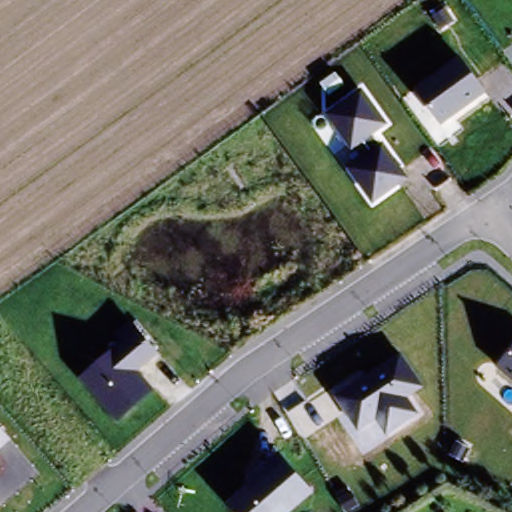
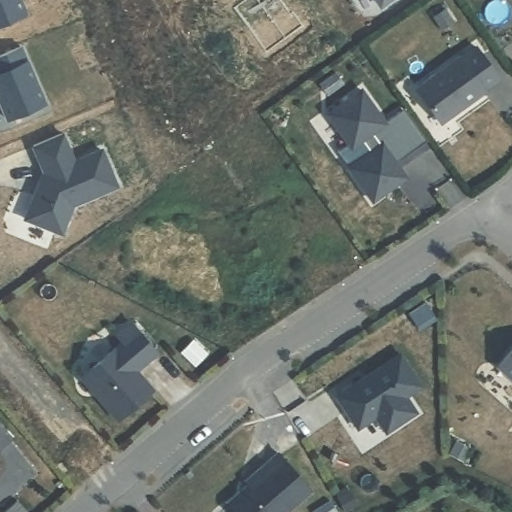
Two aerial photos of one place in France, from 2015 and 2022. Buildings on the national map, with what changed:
new [(0,25),(0,0),(20,0),(26,13),(0,25)]
new [(376,0),(389,0),(380,6),(376,0)]
new [(45,103),(7,119),(0,102),(0,56),(20,47),(45,103)]
unchanged [(458,54),(484,92),(438,125),(412,88),(458,54)]
unchanged [(361,86),(388,124),(373,134),(379,143),(382,141),(407,176),(371,202),(345,167),(369,150),(363,141),(351,150),(324,113),(361,86)]
new [(42,175),(45,174),(33,146),(61,133),(74,162),(101,150),(117,185),(72,205),(61,234),(25,219),(42,175)]
unchanged [(115,343),(117,340),(112,334),(130,320),(159,355),(138,371),(155,391),(116,423),(76,378),(115,343)]
unchanged [(512,346),(512,381),(494,366),(512,346)]
unchanged [(400,352),(423,387),(407,397),(417,413),(384,435),(373,420),(355,432),(333,396),(400,352)]
unchanged [(0,449),(0,427),(11,440),(0,449)]
unchanged [(224,506),(246,486),(242,481),(277,451),(281,455),(313,490),(288,512),(230,512),(224,506)]

